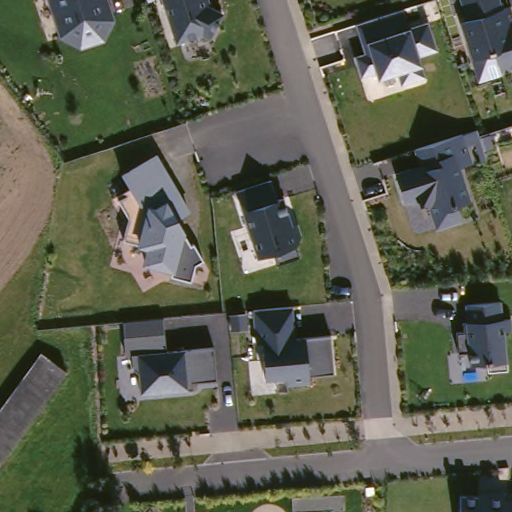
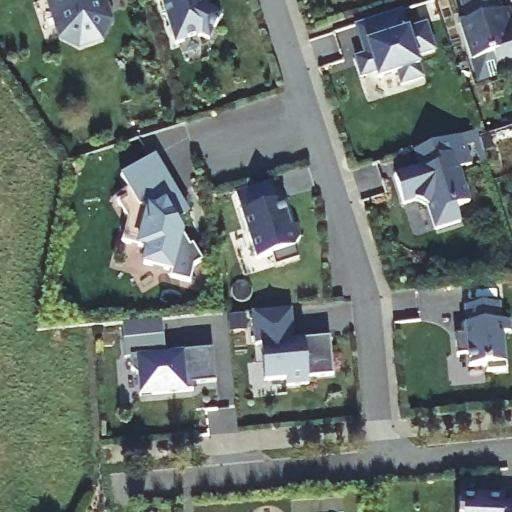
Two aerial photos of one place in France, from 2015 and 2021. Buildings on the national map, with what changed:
unchanged [(106,42),(78,51),(56,37),(46,0),(107,0),(116,20),(106,42)]
unchanged [(174,44),(160,0),(205,0),(208,10),(220,18),(209,42),(196,37),(174,44)]
unchanged [(471,64),(458,26),(467,22),(459,0),(495,0),(499,12),(506,10),(512,24),(512,30),(511,31),(512,34),(512,72),(501,76),(494,56),(471,64)]
unchanged [(438,50),(421,56),(427,76),(402,85),(398,72),(378,78),(376,72),(364,77),(356,56),(365,53),(356,24),(402,9),(410,29),(428,23),(438,50)]
unchanged [(429,207),(417,200),(401,205),(392,177),(419,169),(413,155),(461,139),(472,165),(458,169),(469,205),(456,206),(461,224),(434,229),(429,207)]
unchanged [(141,263),(144,247),(121,242),(129,220),(114,202),(129,192),(119,176),(154,157),(187,215),(177,220),(202,260),(193,267),(190,282),(169,277),(171,272),(141,263)]
unchanged [(236,194),(271,183),(286,224),(297,224),(300,240),(294,251),(299,261),(276,268),(272,256),(256,258),(236,194)]
unchanged [(468,367),(467,356),(458,356),(456,333),(466,332),(464,309),(500,305),(501,320),(508,321),(510,332),(502,333),(505,364),(468,367)]
unchanged [(290,310),(293,340),(329,338),(332,377),(307,378),(306,386),(285,387),(284,380),(264,381),(260,345),(254,346),(253,313),(290,310)]
unchanged [(216,385),(196,384),(196,389),(141,396),(137,366),(126,365),(123,323),(161,321),(166,354),(212,348),(216,385)]
demolished [(68,374),(0,470),(0,418),(4,412),(24,382),(42,353),(68,374)]
unchanged [(460,495),(504,495),(504,500),(512,501),(512,512),(460,512),(460,495)]

